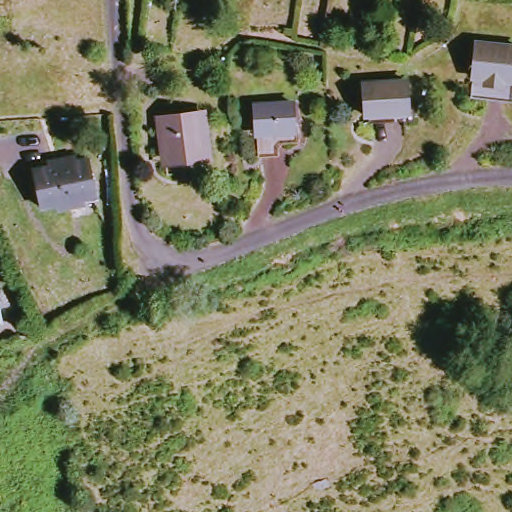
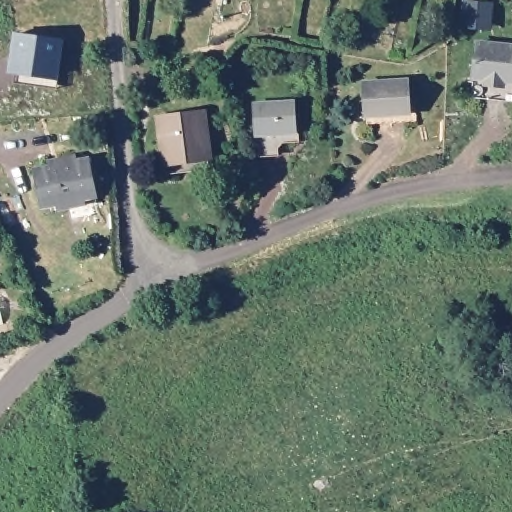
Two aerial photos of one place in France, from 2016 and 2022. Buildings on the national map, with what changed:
new [(63,40),(57,80),(8,72),(11,33),(63,40)]
unchanged [(476,88),(477,76),(465,74),(468,40),(510,45),(506,79),(494,77),(492,90),(476,88)]
unchanged [(365,119),(364,113),(361,113),(358,81),(400,77),(402,102),(403,116),(365,119)]
unchanged [(294,140),(271,140),(271,128),(253,129),(252,102),(288,100),(290,128),(293,128),(294,140)]
unchanged [(160,170),(158,156),(153,115),(195,110),(200,151),(202,166),(160,170)]
unchanged [(75,161),(86,160),(92,199),(57,206),(56,200),(41,203),(34,168),(46,163),(46,158),(73,154),(75,161)]

